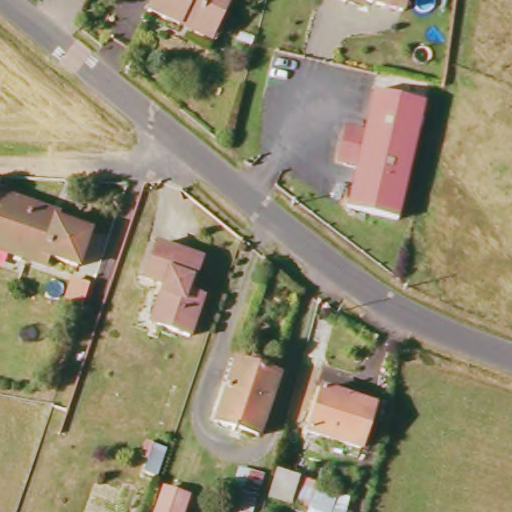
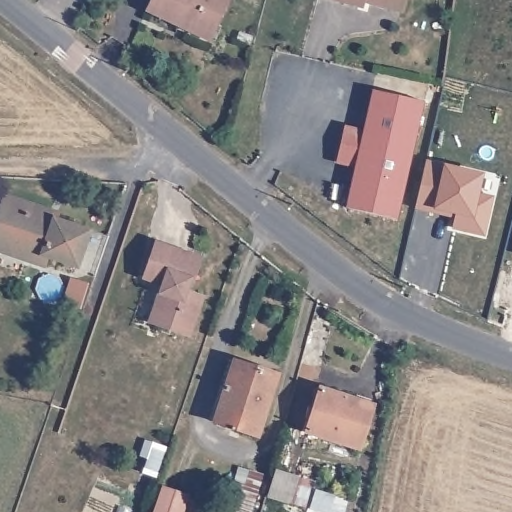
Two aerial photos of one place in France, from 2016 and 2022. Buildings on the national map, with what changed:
unchanged [(156,0),(231,0),(211,41),(150,12),(156,0)]
unchanged [(337,0),(346,0),(345,2),(337,0)]
unchanged [(365,2),(358,0),(365,0),(365,2)]
unchanged [(403,11),(367,0),(406,0),(403,11)]
unchanged [(370,96),(422,109),(393,226),(342,213),(351,174),(341,170),(334,169),(342,132),(348,134),(360,137),(370,96)]
new [(448,228),(452,213),(416,205),(425,155),(504,172),(488,237),(448,228)]
unchanged [(63,212),(61,220),(90,230),(78,269),(48,259),(45,270),(0,256),(0,201),(3,192),(63,212)]
unchanged [(202,262),(190,295),(204,300),(189,344),(147,328),(160,291),(141,285),(155,246),(202,262)]
unchanged [(280,373),(260,439),(212,423),(233,358),(280,373)]
unchanged [(374,403),(358,452),(303,435),(319,386),(374,403)]
unchanged [(230,498),(240,501),(243,493),(227,488),(233,468),(249,474),(250,471),(265,476),(253,512),(227,512),(226,511),(230,498)]
unchanged [(296,477),(288,505),(267,498),(275,470),(296,477)]
unchanged [(190,495),(184,512),(154,512),(163,486),(190,495)]

